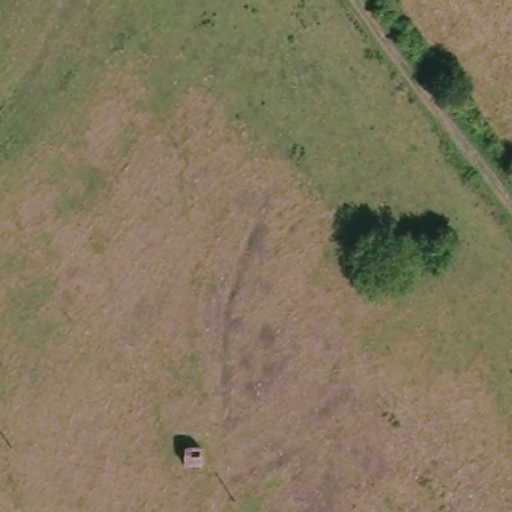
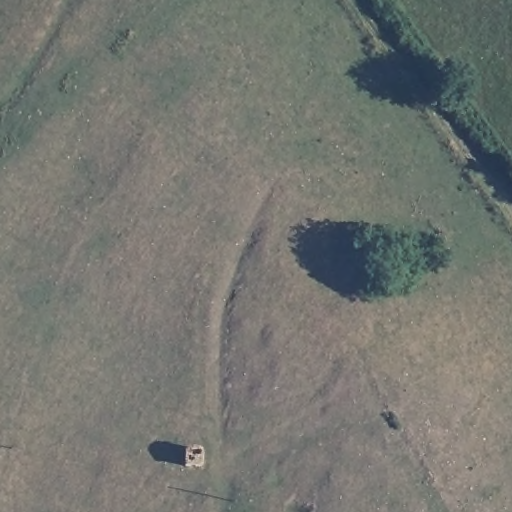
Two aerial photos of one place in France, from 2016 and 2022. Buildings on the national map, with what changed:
unchanged [(203,443),(203,458),(186,458),(187,442),(203,443)]

